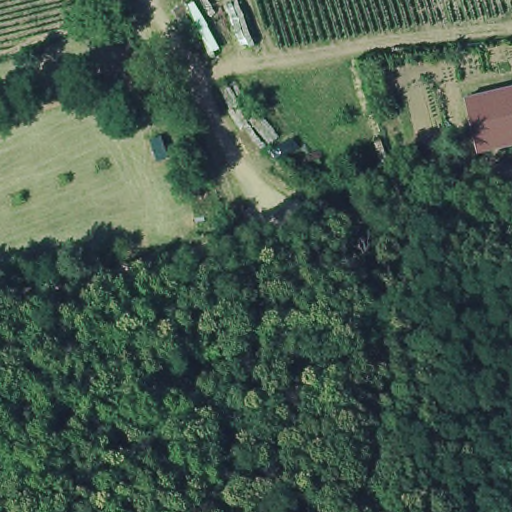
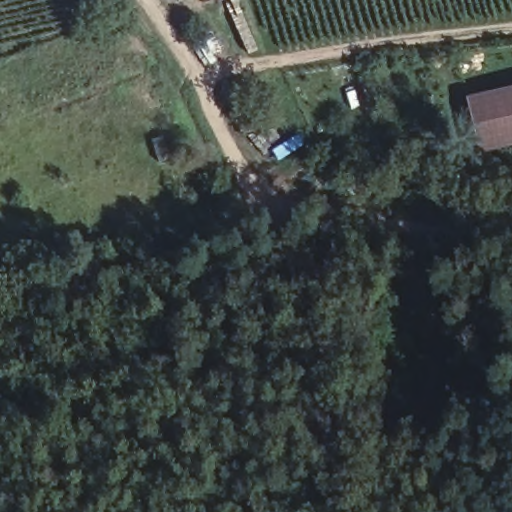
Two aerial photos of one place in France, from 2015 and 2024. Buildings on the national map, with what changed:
unchanged [(478,153),(465,98),(512,88),(512,146),(478,153)]

